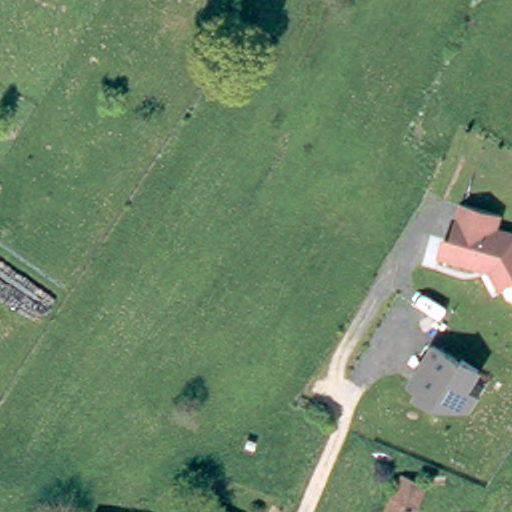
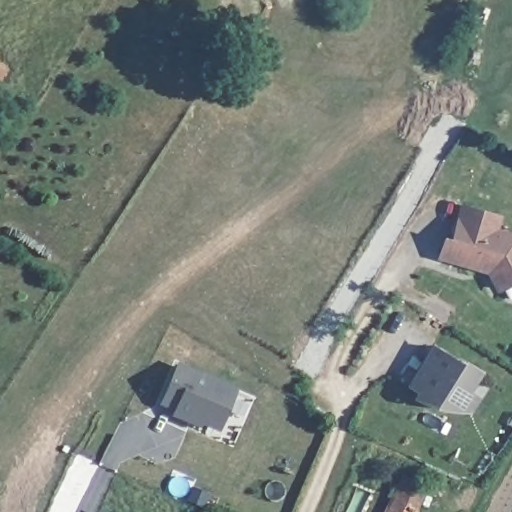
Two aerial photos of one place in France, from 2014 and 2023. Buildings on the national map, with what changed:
unchanged [(495,208),(492,222),(503,227),(512,231),(512,278),(498,285),(488,267),(490,264),(482,262),(480,261),(478,264),(440,252),(443,234),(450,236),(458,200),(495,208)]
unchanged [(466,406),(454,402),(432,397),(415,390),(417,385),(410,381),(408,380),(432,342),(433,343),(458,359),(460,356),(477,367),(465,386),(475,393),(466,406)]
new [(172,416),(174,412),(160,407),(177,365),(237,387),(220,431),(201,425),(200,428),(172,416)]
unchanged [(374,512),(385,487),(405,495),(399,512),(374,512)]
unchanged [(101,512),(93,512),(94,509),(101,512)]

